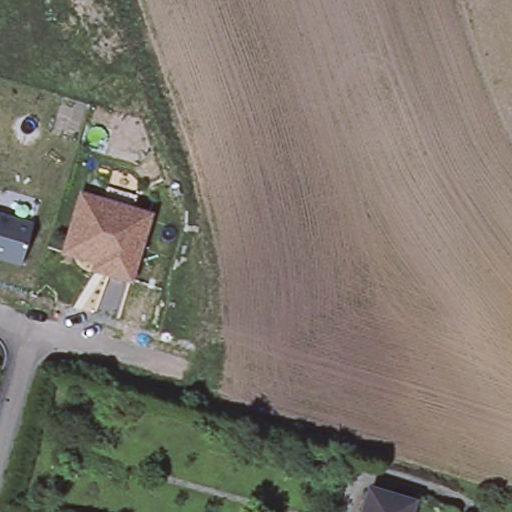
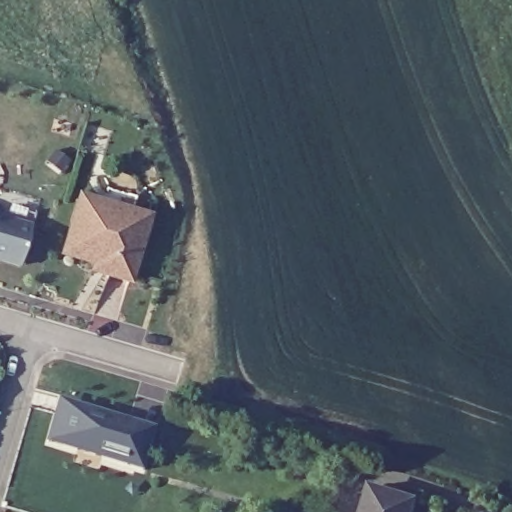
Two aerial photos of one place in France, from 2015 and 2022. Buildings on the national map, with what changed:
unchanged [(149,214),(133,284),(93,274),(94,266),(64,257),(78,194),(149,214)]
unchanged [(23,265),(0,259),(0,216),(30,224),(23,265)]
new [(146,468),(51,440),(59,412),(75,417),(78,404),(158,427),(146,468)]
unchanged [(410,500),(407,512),(361,512),(368,488),(410,500)]

